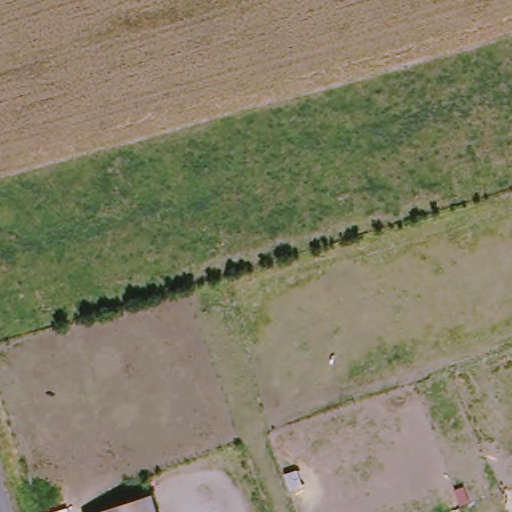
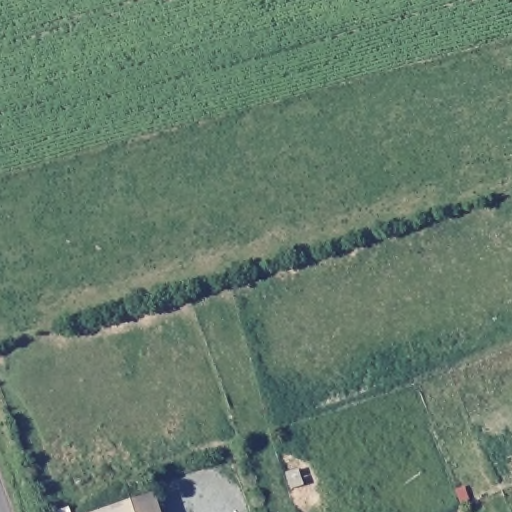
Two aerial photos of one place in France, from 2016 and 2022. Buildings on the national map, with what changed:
unchanged [(122,512),(146,503),(150,512),(122,512)]

